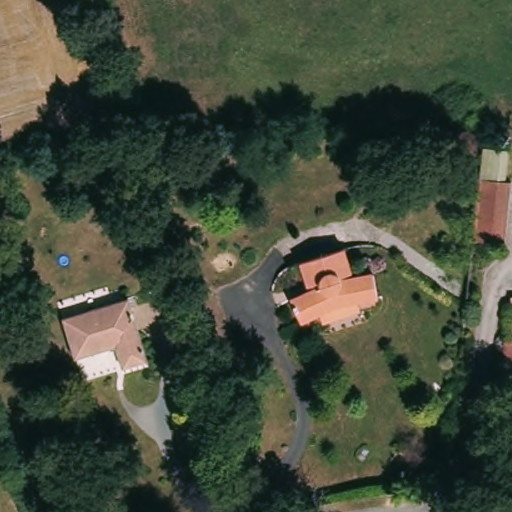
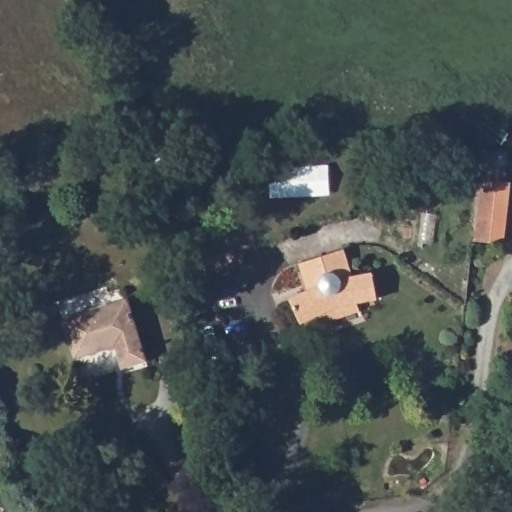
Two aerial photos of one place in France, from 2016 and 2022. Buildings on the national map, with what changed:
unchanged [(478,182),(510,183),(504,250),(470,245),(478,182)]
unchanged [(379,302),(341,312),(292,331),(280,302),(310,290),(302,261),(347,247),(355,278),(374,273),(379,302)]
unchanged [(144,362),(117,369),(111,346),(70,358),(59,321),(127,301),(144,362)]

